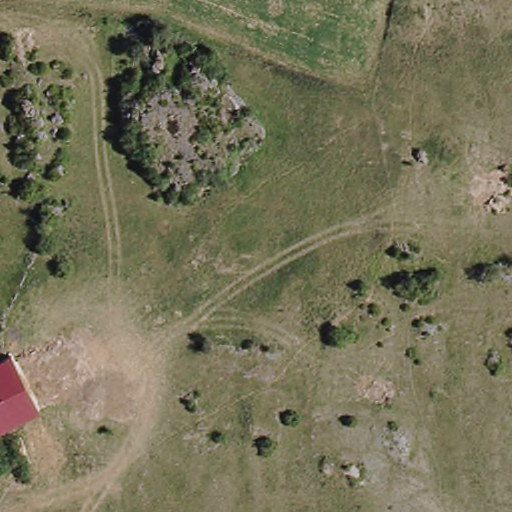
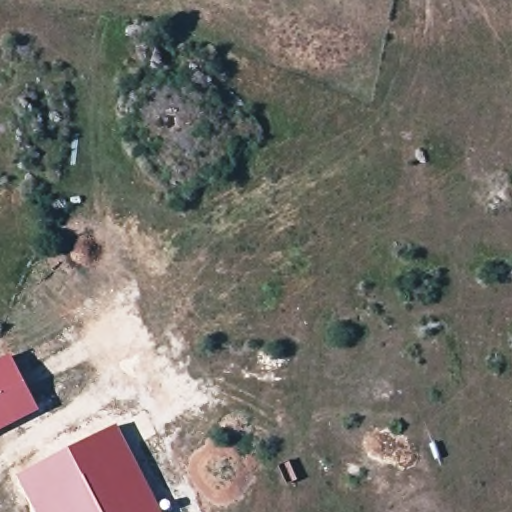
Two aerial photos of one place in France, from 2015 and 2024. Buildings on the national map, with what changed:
unchanged [(41,411),(0,432),(0,360),(12,353),(41,411)]
new [(113,426),(158,512),(33,512),(15,477),(113,426)]

